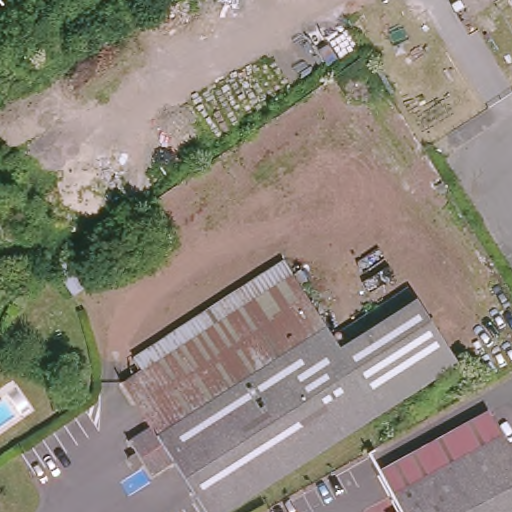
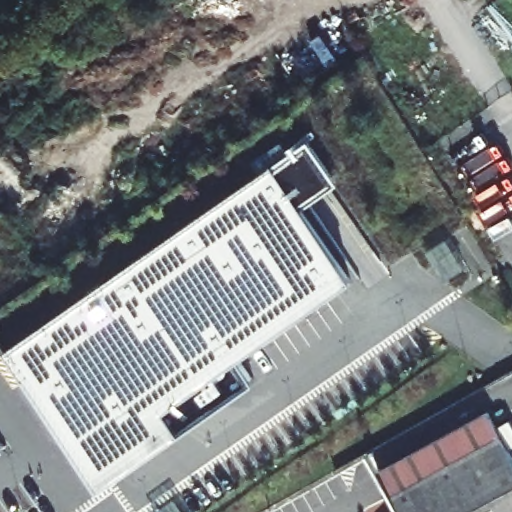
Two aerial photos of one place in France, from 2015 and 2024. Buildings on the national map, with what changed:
new [(397,268),(170,413),(192,441),(100,497),(0,354),(0,347),(309,132),(397,268)]
new [(448,237),(466,267),(445,281),(426,250),(448,237)]
demolished [(72,296),(53,267),(65,258),(85,287),(72,296)]
demolished [(284,347),(135,443),(129,434),(149,421),(123,380),(207,325),(199,312),(242,283),(250,298),(293,271),(325,321),(284,347)]
demolished [(417,293),(457,357),(214,512),(207,512),(172,457),(152,470),(144,457),(135,462),(129,452),(137,447),(135,443),(284,347),(325,321),(340,343),(417,293)]
unchanged [(394,512),(400,509),(379,472),(489,410),(512,453),(512,512),(394,512)]

